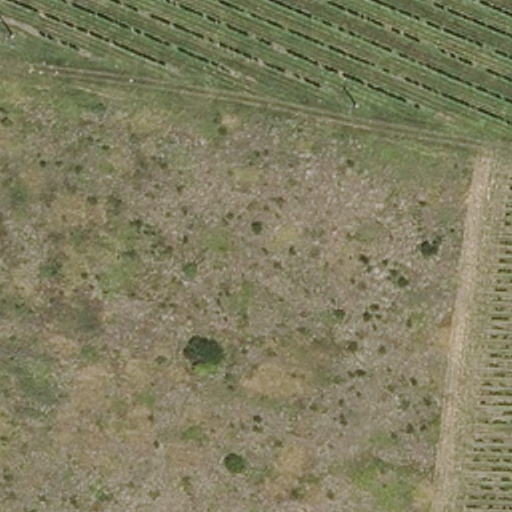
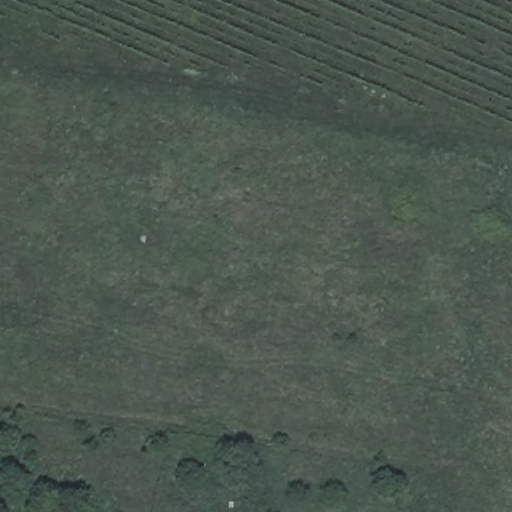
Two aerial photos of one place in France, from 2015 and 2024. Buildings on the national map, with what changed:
[]

